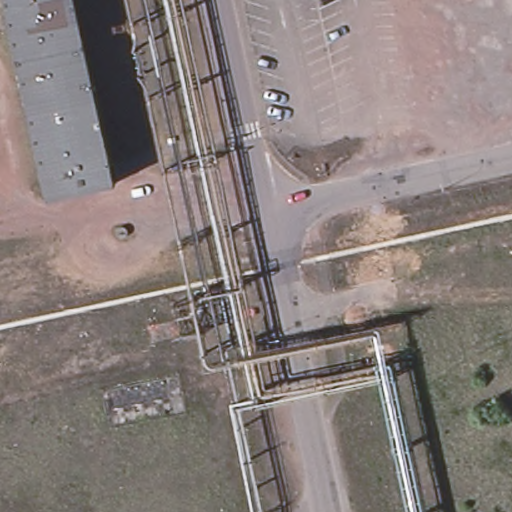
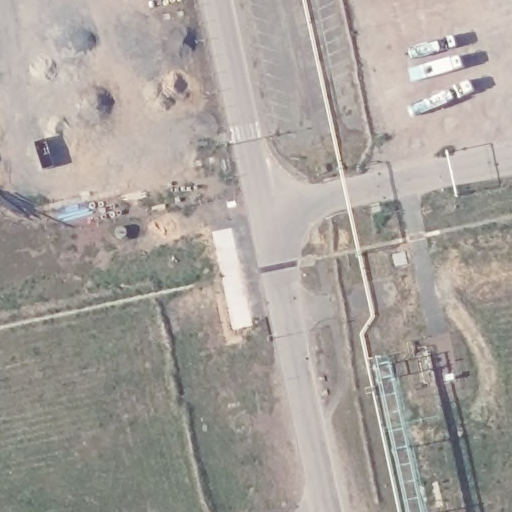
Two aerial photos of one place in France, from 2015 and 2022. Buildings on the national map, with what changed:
demolished [(4,0),(74,0),(114,183),(47,198),(4,0)]

